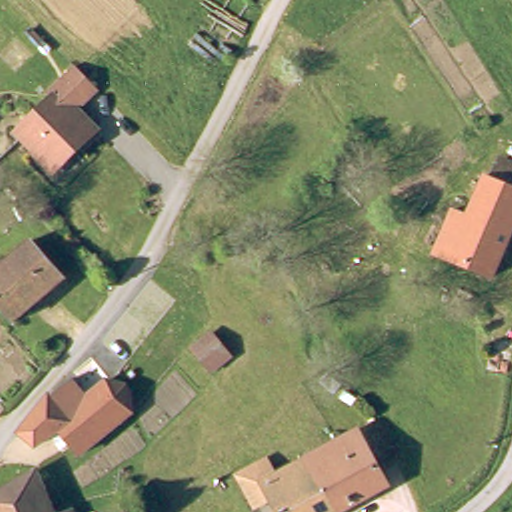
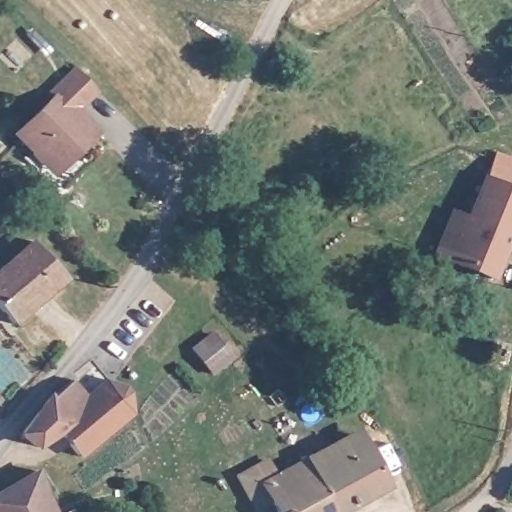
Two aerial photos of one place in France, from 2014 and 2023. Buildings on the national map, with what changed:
unchanged [(33,158),(16,139),(55,100),(52,97),(77,69),(97,90),(71,118),(77,124),(87,123),(97,134),(77,158),(70,158),(56,174),(52,179),(33,158)]
unchanged [(455,222),(475,224),(483,181),(486,182),(490,161),(512,165),(512,255),(507,282),(445,270),(455,222)]
unchanged [(33,247),(65,287),(13,328),(0,312),(0,272),(33,247)]
unchanged [(207,374),(188,353),(207,337),(226,358),(207,374)]
unchanged [(77,423),(109,397),(123,397),(133,408),(132,410),(132,421),(82,464),(62,442),(32,467),(19,451),(58,408),(75,389),(89,406),(71,422),(74,425),(77,423)]
unchanged [(360,443),(366,438),(395,489),(372,502),(342,445),(357,438),(360,443)]
unchanged [(372,502),(351,512),(335,512),(310,463),(332,451),(342,445),(372,502)]
unchanged [(275,502),(260,509),(244,478),(273,463),(282,478),(310,463),(335,512),(280,512),(275,502)]
unchanged [(48,481),(61,512),(0,512),(0,500),(48,481)]

